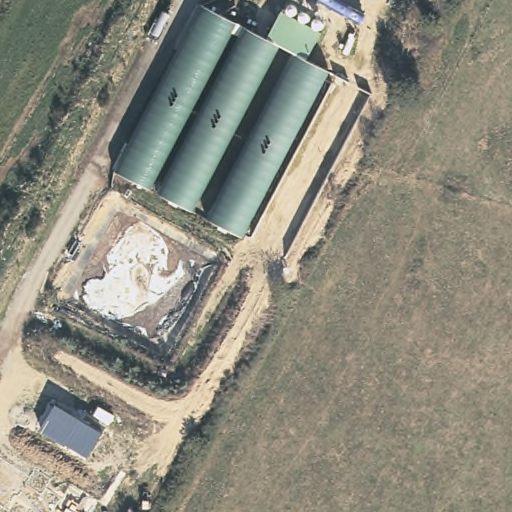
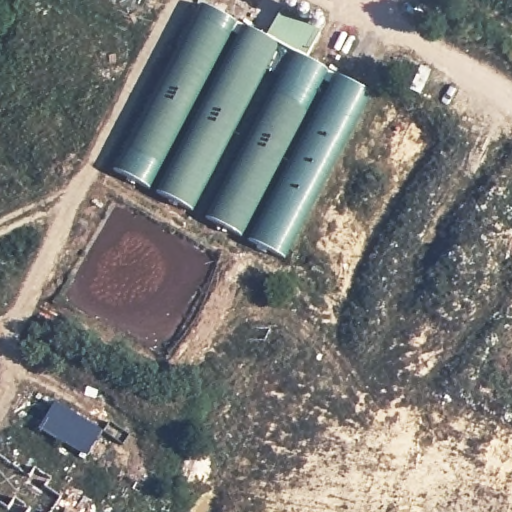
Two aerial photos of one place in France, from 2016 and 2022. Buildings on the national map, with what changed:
unchanged [(243,236),(117,172),(205,6),(269,37),(282,12),(321,34),(307,59),(329,71),(243,236)]
new [(373,93),(287,260),(243,236),(329,71),(338,75),(373,93)]
unchanged [(57,404),(102,433),(86,457),(41,431),(57,404)]

